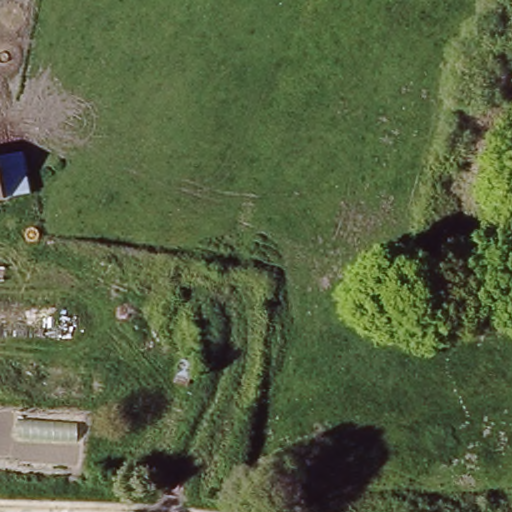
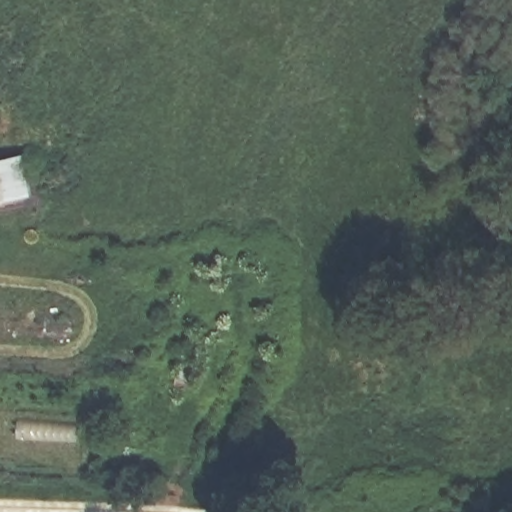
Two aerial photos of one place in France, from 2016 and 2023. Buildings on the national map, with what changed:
unchanged [(0,157),(21,154),(23,153),(32,198),(23,200),(0,204),(0,157)]

